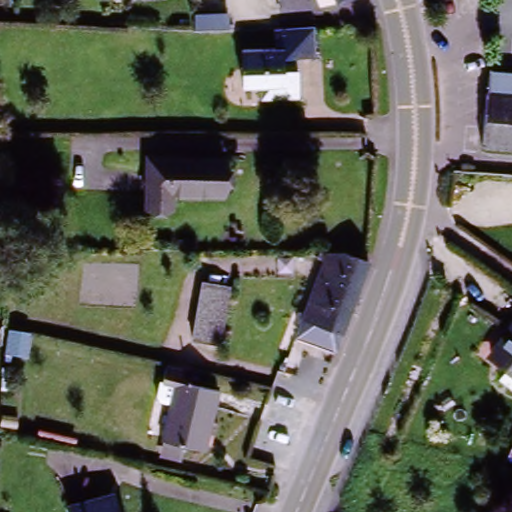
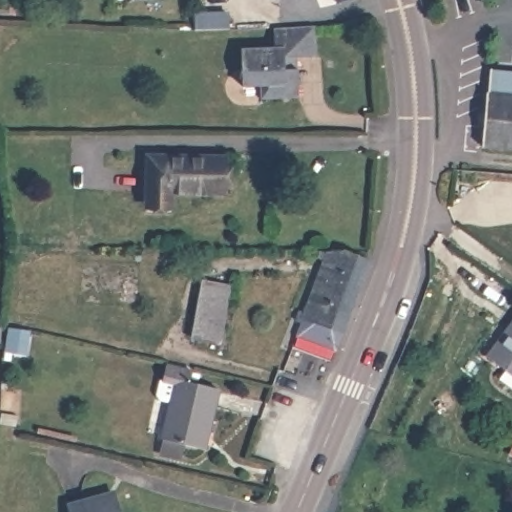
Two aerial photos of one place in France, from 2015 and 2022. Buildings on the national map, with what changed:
unchanged [(336,0),(342,0),(337,1),(336,0)]
unchanged [(297,63),(297,69),(303,76),(304,103),(270,104),(270,94),(248,94),(247,58),(280,56),(279,30),(287,30),(317,28),(320,61),(297,63)]
unchanged [(497,63),(512,66),(512,149),(479,141),(497,63)]
unchanged [(170,200),(147,199),(149,158),(224,159),(223,192),(171,191),(170,200)]
unchanged [(347,337),(305,320),(329,263),(317,258),(321,249),(335,249),(377,264),(347,337)]
unchanged [(202,287),(230,287),(230,344),(200,344),(200,341),(202,287)]
unchanged [(292,351),(305,320),(347,337),(340,355),(335,367),(292,351)]
unchanged [(495,349),(512,327),(512,362),(495,349)]
unchanged [(169,446),(177,411),(166,408),(162,403),(166,393),(171,390),(174,378),(202,384),(199,392),(222,397),(209,456),(186,451),(183,464),(170,462),(174,448),(169,446)]
unchanged [(507,384),(512,378),(512,387),(507,384)]
unchanged [(512,463),(512,466),(511,465),(512,463)]
unchanged [(67,507),(109,494),(115,492),(120,512),(68,512),(67,507)]

